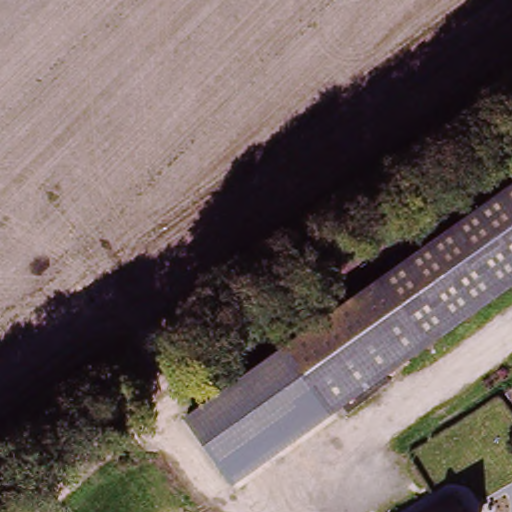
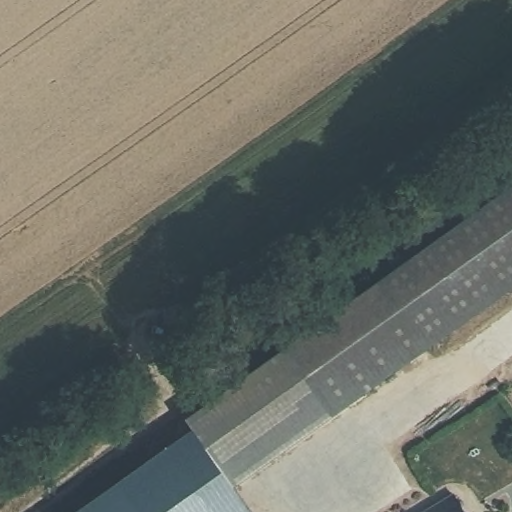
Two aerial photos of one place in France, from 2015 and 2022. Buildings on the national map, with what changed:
unchanged [(330,416),(293,366),(512,212),(512,286),(330,416)]
unchanged [(209,375),(194,355),(214,340),(229,360),(209,375)]
unchanged [(293,366),(330,416),(232,486),(186,421),(285,353),(293,366)]
new [(250,512),(77,512),(192,430),(223,473),(232,486),(250,512)]
unchanged [(454,499),(462,512),(433,512),(454,499)]

